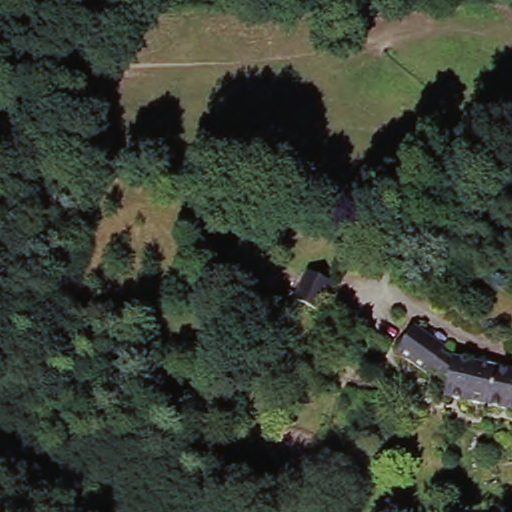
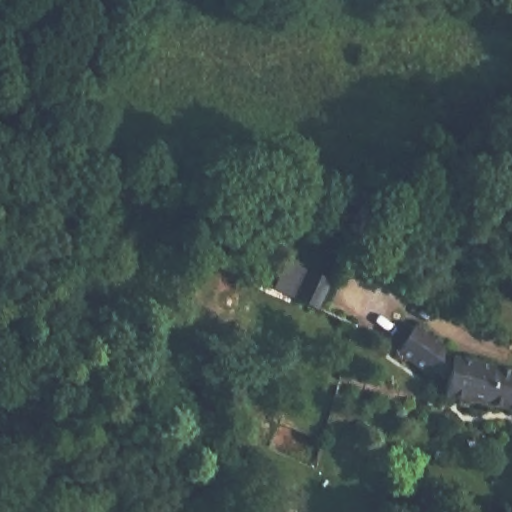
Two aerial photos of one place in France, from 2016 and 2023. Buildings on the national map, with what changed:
unchanged [(305,268),(330,279),(317,309),(291,297),(305,268)]
unchanged [(445,378),(428,367),(425,371),(394,351),(414,324),(443,346),(439,352),(449,359),(450,357),(512,371),(512,412),(442,394),(445,378)]

